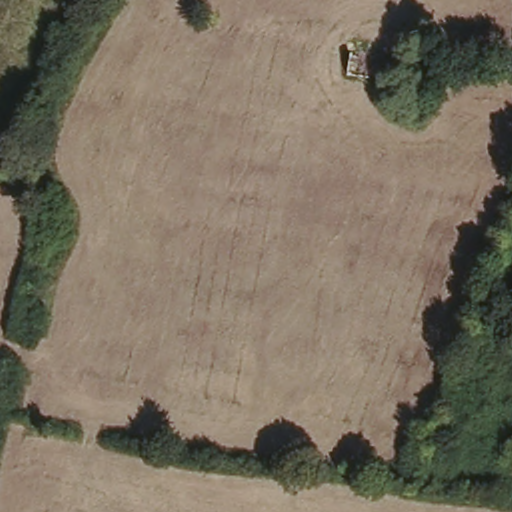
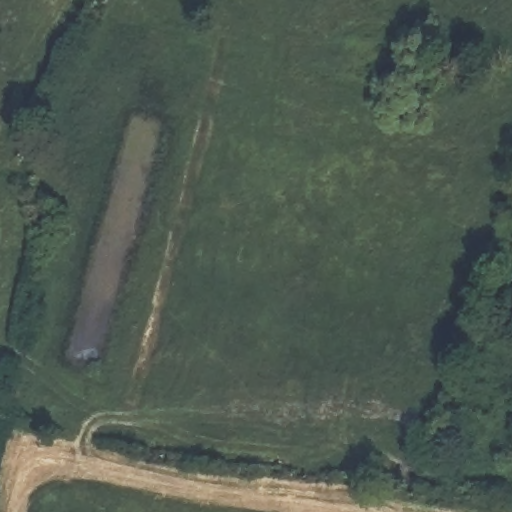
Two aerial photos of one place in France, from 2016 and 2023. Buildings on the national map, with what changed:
unchanged [(348,80),(350,57),(382,59),(382,82),(348,80)]

